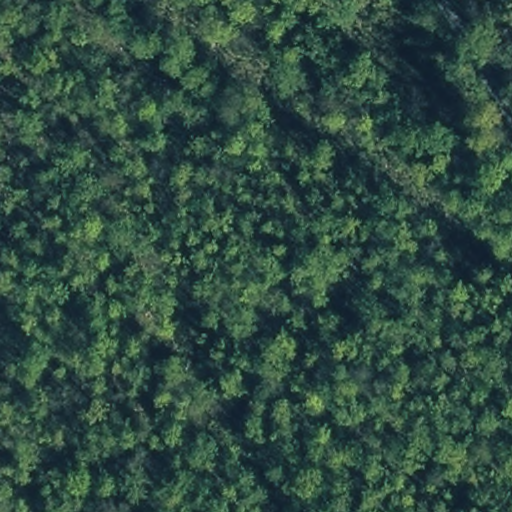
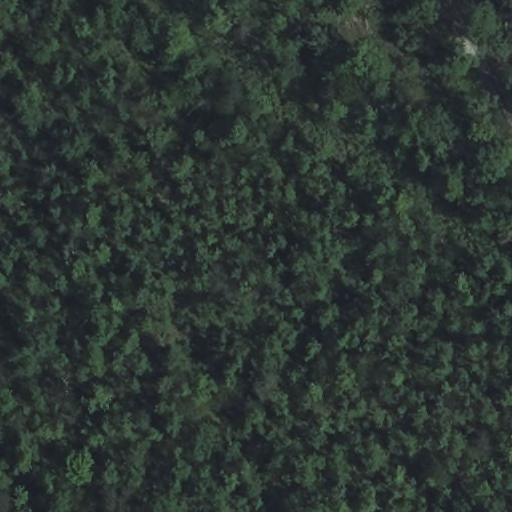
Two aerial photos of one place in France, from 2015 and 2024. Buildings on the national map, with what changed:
[]

